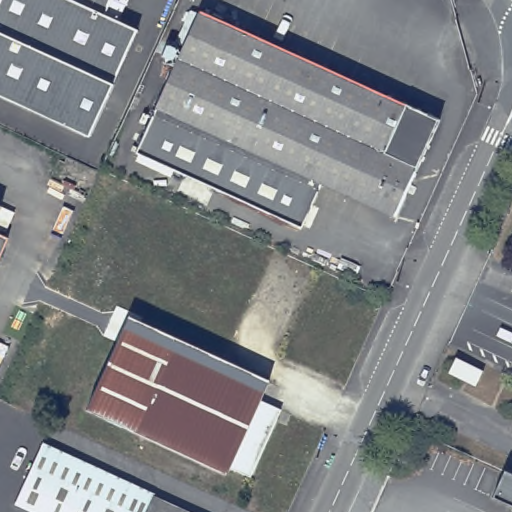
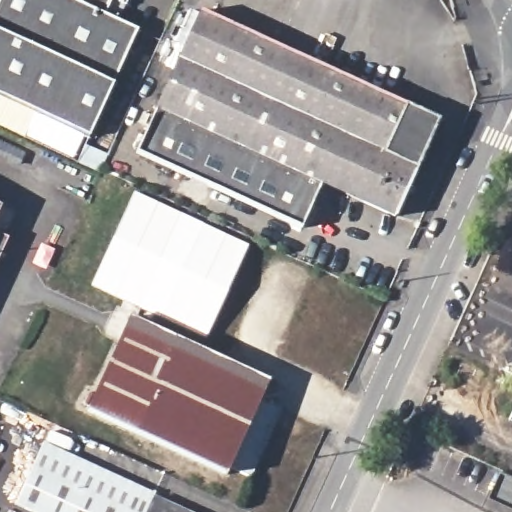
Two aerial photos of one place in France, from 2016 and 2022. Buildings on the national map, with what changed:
unchanged [(104,18),(138,33),(88,141),(0,101),(0,2),(1,0),(112,0),(104,18)]
unchanged [(202,10),(439,118),(395,216),(325,184),(304,230),(137,154),(202,10)]
unchanged [(115,140),(127,145),(120,161),(129,164),(121,179),(111,175),(113,171),(103,167),(115,140)]
new [(133,191),(250,245),(206,341),(88,287),(133,191)]
unchanged [(0,222),(0,209),(5,211),(0,222)]
unchanged [(0,269),(0,238),(12,243),(0,269)]
unchanged [(133,321),(273,384),(265,400),(286,409),(255,476),(235,467),(232,473),(92,410),(133,321)]
unchanged [(456,358),(482,371),(478,381),(451,368),(456,358)]
unchanged [(154,494),(153,497),(186,512),(35,512),(15,503),(41,444),(154,494)]
unchanged [(493,498),(505,471),(512,474),(512,507),(493,498)]

